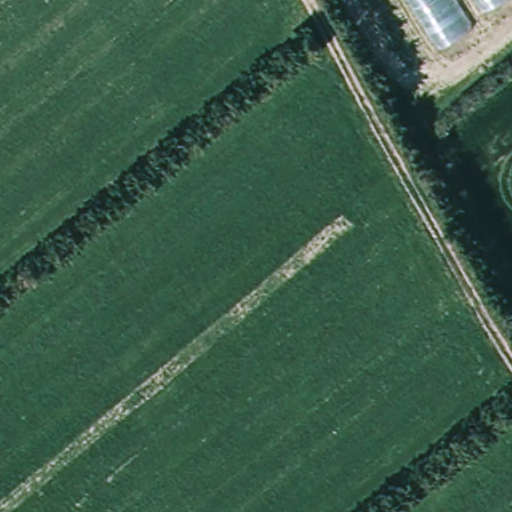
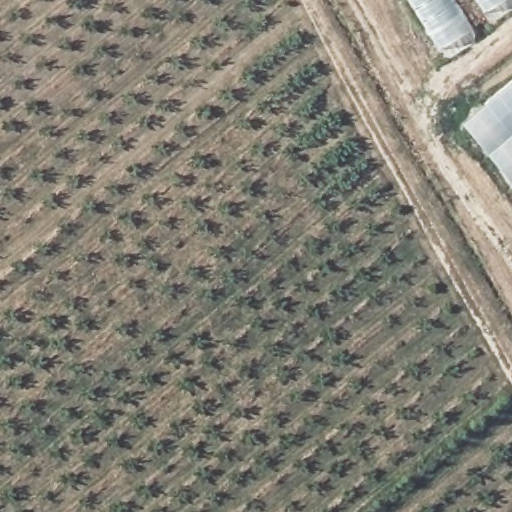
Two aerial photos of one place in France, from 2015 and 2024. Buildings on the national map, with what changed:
unchanged [(412,0),(498,0),(441,47),(412,0)]
new [(512,82),(512,186),(460,125),(512,82)]

